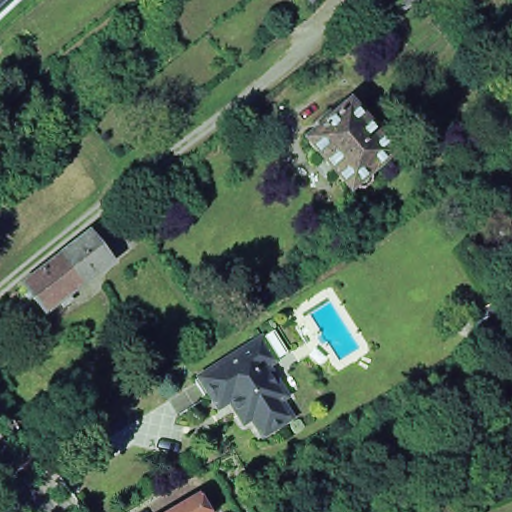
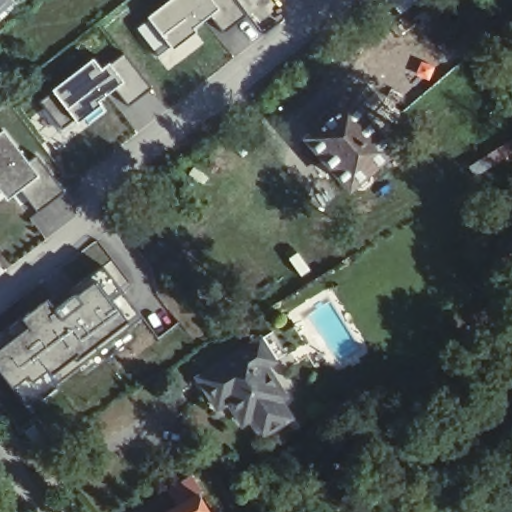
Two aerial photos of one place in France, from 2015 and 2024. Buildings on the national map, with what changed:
unchanged [(0,11),(0,0),(1,0),(6,5),(0,11)]
unchanged [(1,0),(15,0),(20,6),(0,25),(0,11),(6,5),(1,0)]
new [(210,0),(220,16),(156,59),(130,24),(165,0),(210,0)]
unchanged [(388,0),(416,0),(417,1),(399,14),(388,0)]
new [(90,56),(102,69),(118,55),(145,88),(127,105),(117,97),(104,107),(107,114),(69,140),(35,98),(90,56)]
unchanged [(308,139),(352,102),(395,152),(372,171),(375,175),(374,182),(365,189),(359,188),(356,185),(352,189),(308,139)]
new [(40,182),(5,206),(0,200),(0,131),(2,130),(40,182)]
demolished [(83,229),(105,257),(63,289),(68,296),(60,302),(55,296),(40,307),(17,280),(83,229)]
unchanged [(474,249),(465,254),(461,247),(460,245),(470,240),(470,242),(474,249)]
new [(20,322),(45,304),(53,313),(93,283),(90,277),(112,259),(135,289),(125,298),(142,321),(25,412),(0,376),(0,351),(27,332),(20,322)]
unchanged [(253,342),(266,333),(288,370),(282,375),(293,392),(280,401),(260,370),(267,365),(253,342)]
unchanged [(257,439),(255,437),(246,422),(237,428),(222,407),(212,415),(191,383),(253,342),(267,365),(260,370),(280,401),(275,405),(285,420),(257,439)]
unchanged [(195,488),(207,510),(203,512),(154,512),(195,488)]

